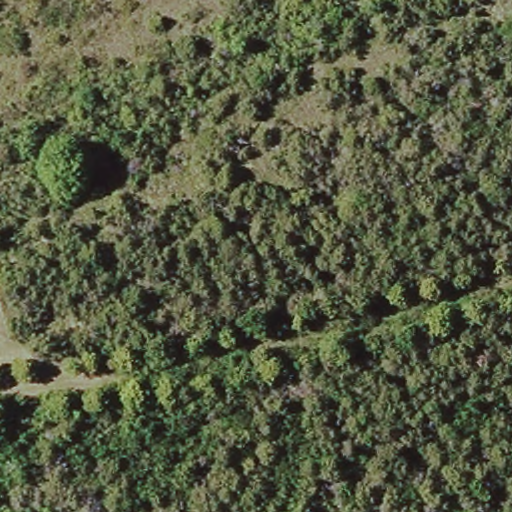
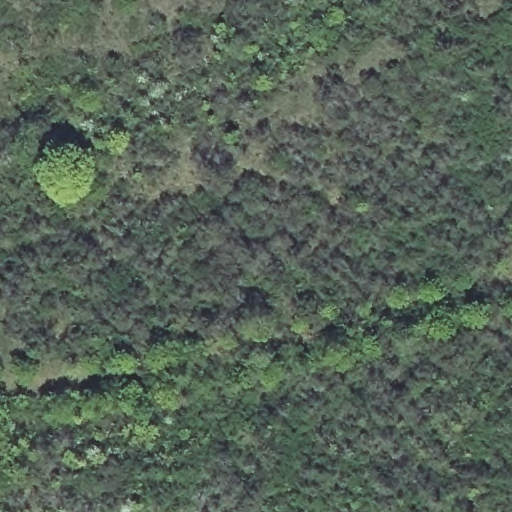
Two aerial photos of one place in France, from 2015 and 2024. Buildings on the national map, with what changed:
[]

